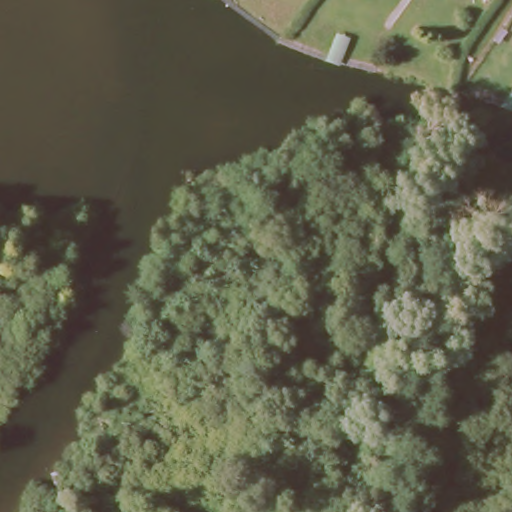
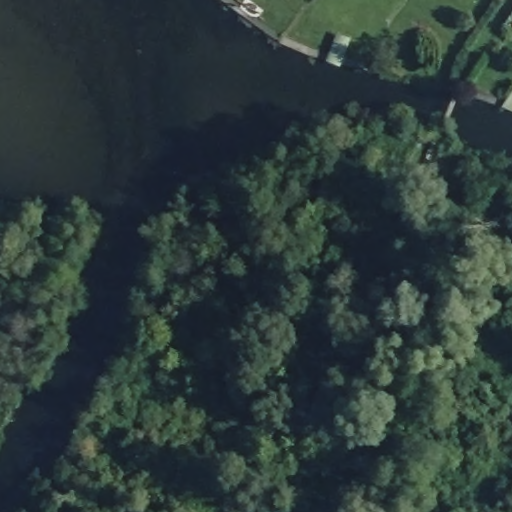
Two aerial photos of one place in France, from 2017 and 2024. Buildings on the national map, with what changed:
unchanged [(217,0),(221,0),(219,2),(217,0)]
unchanged [(501,0),(500,2),(495,0),(501,0)]
unchanged [(335,69),(330,67),(339,41),(350,45),(341,70),(335,69)]
unchanged [(512,102),(512,118),(504,115),(512,102)]

